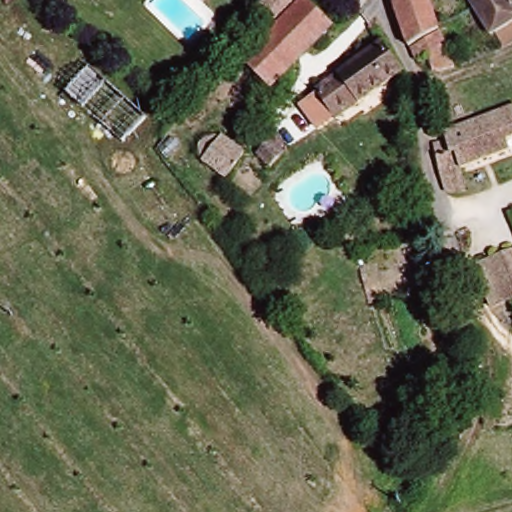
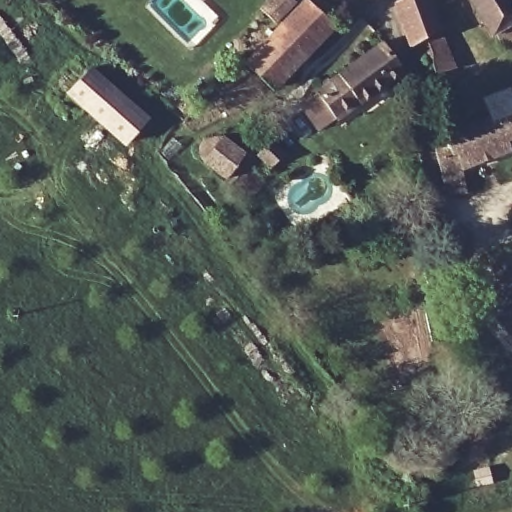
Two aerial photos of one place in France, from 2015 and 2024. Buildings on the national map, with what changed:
unchanged [(399,0),(424,0),(440,32),(412,46),(395,4),(399,0)]
unchanged [(465,0),(510,0),(512,4),(512,37),(502,45),(493,30),(487,34),(465,0)]
unchanged [(247,66),(307,4),(333,29),(273,91),(247,66)]
unchanged [(442,40),(456,68),(436,74),(432,61),(419,64),(414,51),(442,40)]
unchanged [(405,73),(342,120),(316,132),(298,106),(320,91),(385,43),(405,73)]
new [(66,94),(92,65),(152,118),(126,146),(66,94)]
unchanged [(433,153),(445,150),(442,138),(512,113),(512,143),(503,146),(507,158),(455,174),(460,192),(441,197),(437,178),(433,153)]
unchanged [(228,179),(206,161),(225,139),(247,156),(228,179)]
unchanged [(275,141),(288,155),(275,168),(262,155),(275,141)]
unchanged [(512,257),(512,303),(504,306),(488,267),(512,257)]

